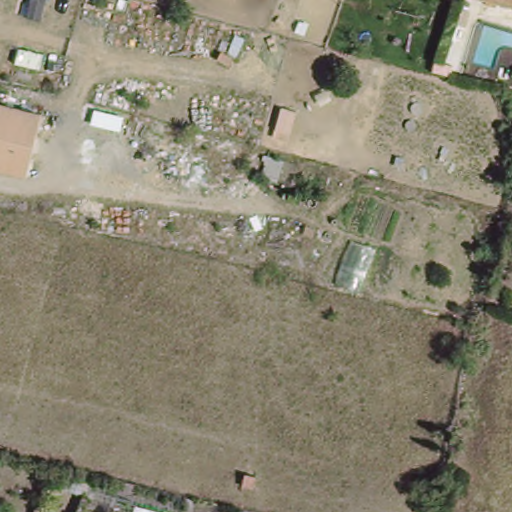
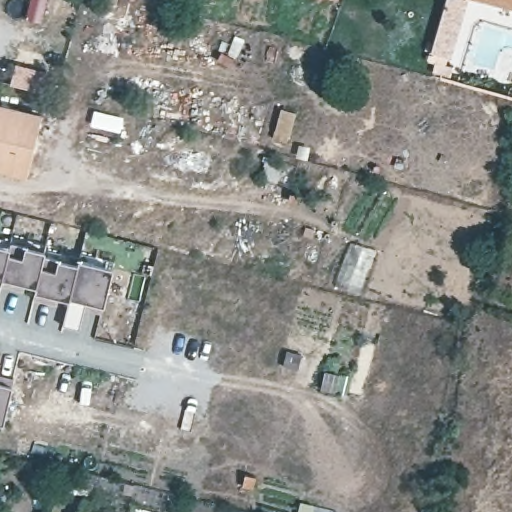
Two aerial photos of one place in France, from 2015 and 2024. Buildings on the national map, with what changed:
new [(450,57),(430,51),(444,0),(468,0),(450,57)]
unchanged [(490,0),(512,0),(512,6),(490,0)]
unchanged [(0,166),(0,103),(45,114),(29,173),(0,166)]
new [(12,243),(45,250),(45,255),(79,264),(79,260),(112,267),(102,312),(84,308),(80,328),(64,325),(69,299),(58,297),(57,302),(33,297),(35,286),(27,284),(25,289),(0,283),(0,244),(10,246),(12,243)]
new [(0,359),(0,353),(1,353),(0,359)]
new [(4,421),(0,421),(0,375),(13,378),(4,421)]

